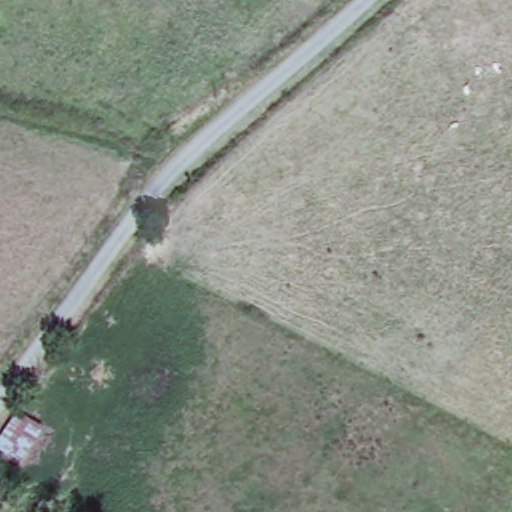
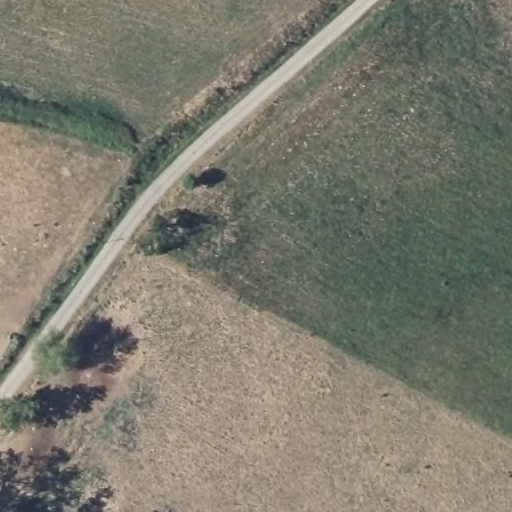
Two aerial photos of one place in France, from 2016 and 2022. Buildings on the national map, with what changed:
unchanged [(21,468),(0,457),(0,439),(17,417),(44,435),(30,455),(21,468)]

